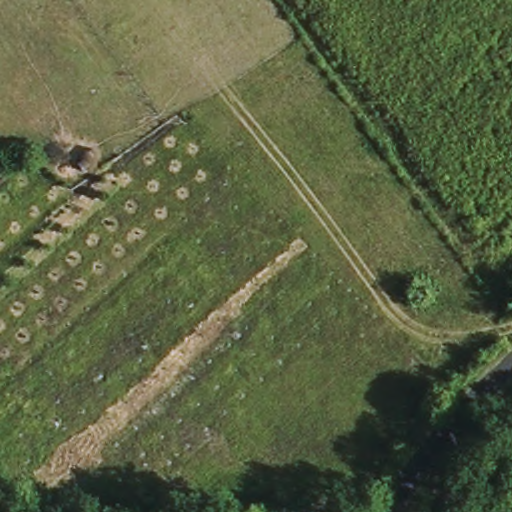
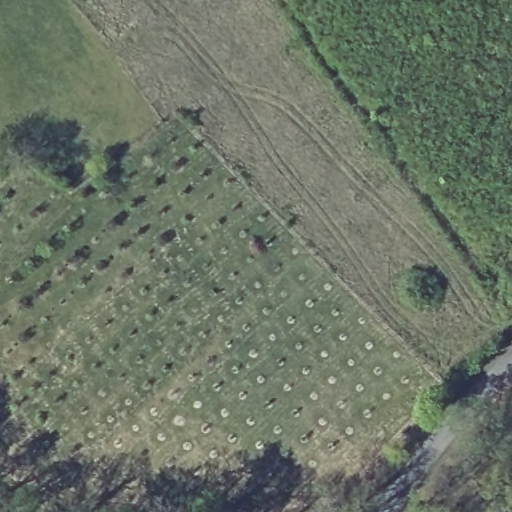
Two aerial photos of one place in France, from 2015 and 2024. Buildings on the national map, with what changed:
[]

